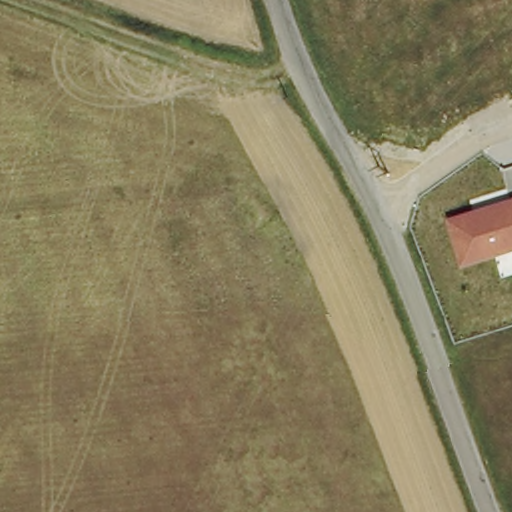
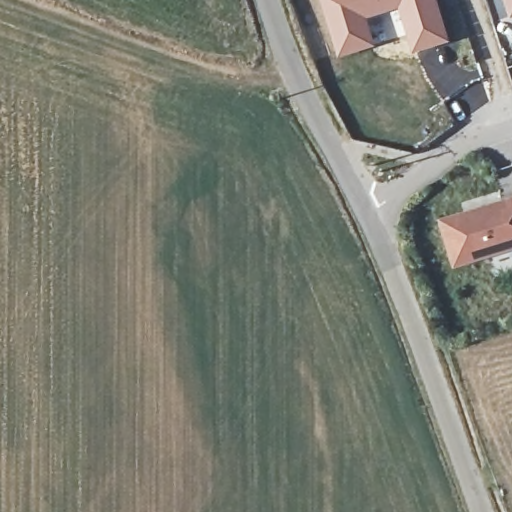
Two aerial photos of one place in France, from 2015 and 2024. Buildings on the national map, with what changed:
new [(320,0),(436,0),(450,45),(413,55),(400,10),(369,20),(377,47),(337,59),(320,0)]
new [(512,15),(507,0),(512,0),(512,15)]
unchanged [(512,253),(455,269),(440,222),(512,199),(512,253)]

